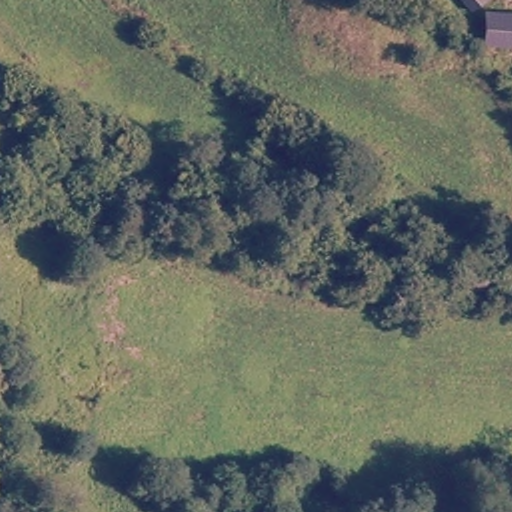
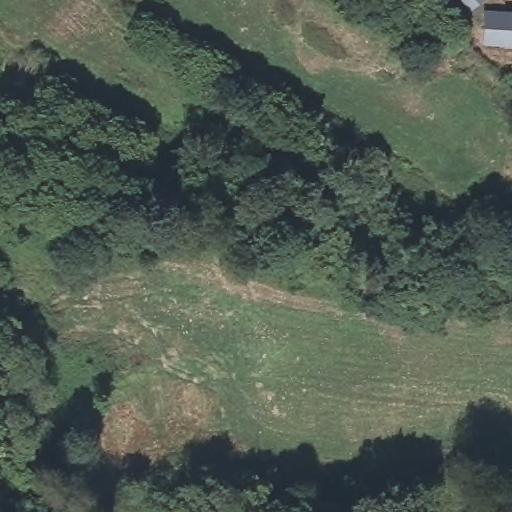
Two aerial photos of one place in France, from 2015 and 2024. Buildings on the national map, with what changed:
unchanged [(478,11),(470,0),(490,0),(478,11)]
unchanged [(493,14),(512,14),(512,49),(492,49),(493,14)]
unchanged [(466,282),(467,242),(512,243),(512,282),(466,282)]

